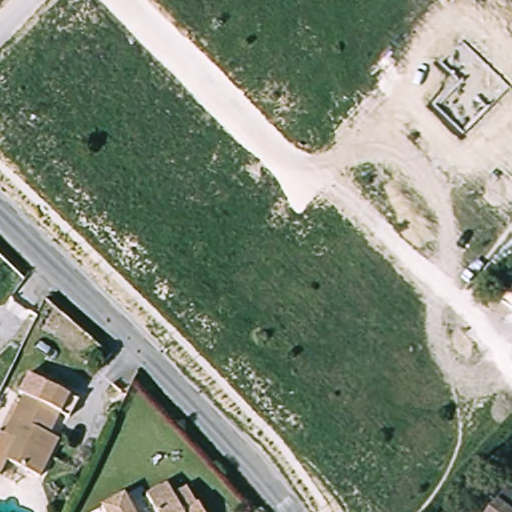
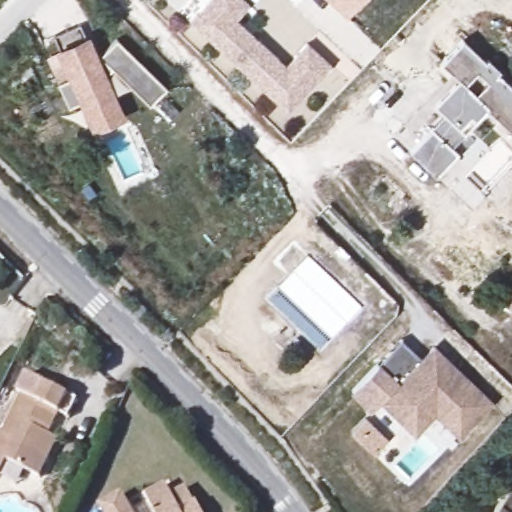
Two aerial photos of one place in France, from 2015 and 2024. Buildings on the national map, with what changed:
new [(249,3),(236,19),(286,64),(306,42),(332,66),(288,112),(188,20),(206,0),(246,0),(249,3)]
new [(347,17),(329,0),(364,0),(347,17)]
new [(105,75),(125,117),(91,131),(78,103),(69,107),(58,84),(68,79),(56,50),(52,37),(80,27),(84,39),(91,37),(98,57),(118,39),(166,87),(151,105),(112,69),(105,75)]
new [(485,65),(487,62),(498,73),(495,76),(512,92),(512,135),(486,110),(451,149),(456,154),(434,177),(408,151),(441,117),(434,109),(459,82),(440,64),(462,42),(485,65)]
new [(362,307),(320,350),(265,297),(307,254),(362,307)]
unchanged [(512,288),(512,309),(502,301),(512,288)]
new [(399,335),(420,356),(395,380),(375,359),(399,335)]
new [(403,420),(379,395),(368,405),(349,385),(375,359),(395,380),(420,356),(431,345),(487,400),(455,432),(432,408),(411,428),(403,420)]
unchanged [(50,456),(41,476),(8,460),(0,476),(0,475),(0,443),(22,394),(19,392),(26,377),(77,400),(70,415),(60,411),(49,434),(58,438),(50,456)]
unchanged [(512,512),(489,512),(512,485),(512,512)]
unchanged [(165,487),(174,501),(190,492),(197,505),(202,512),(157,512),(148,497),(165,487)]
unchanged [(125,497),(133,512),(106,512),(104,509),(125,497)]

